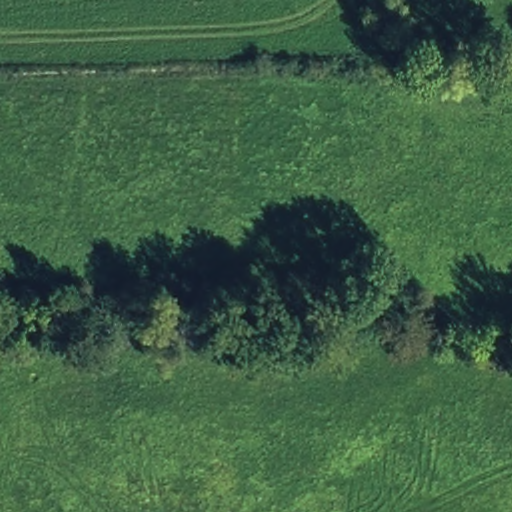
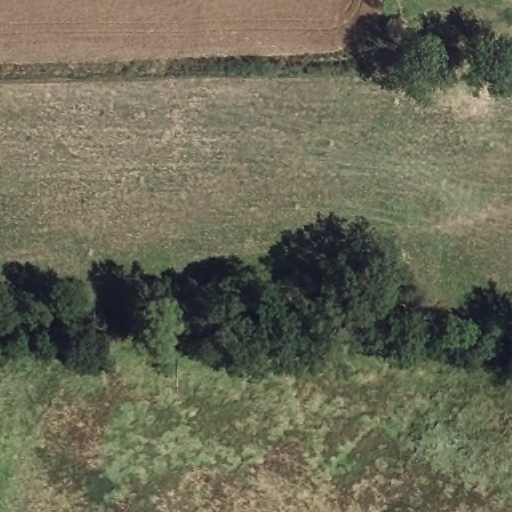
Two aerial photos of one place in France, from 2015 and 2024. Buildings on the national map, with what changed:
[]

